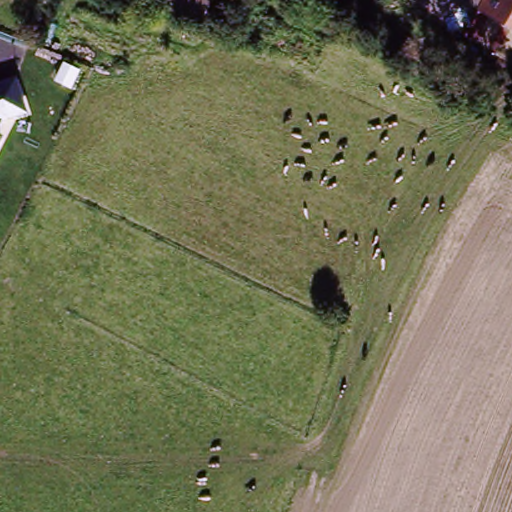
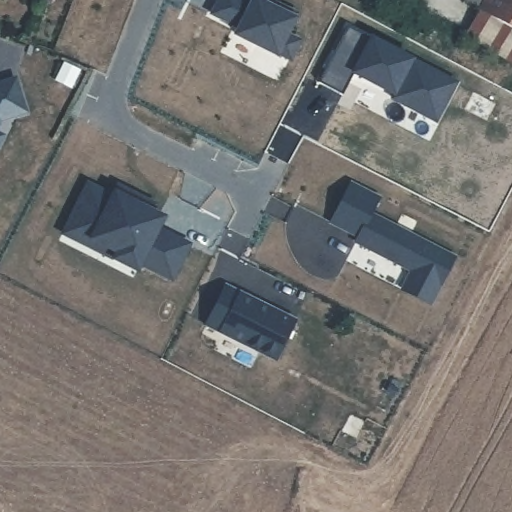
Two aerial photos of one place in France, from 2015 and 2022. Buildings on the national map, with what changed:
demolished [(152,5),(154,0),(207,0),(193,26),(152,5)]
new [(246,0),(250,1),(250,0),(258,0),(272,7),(274,3),(295,13),(285,33),(297,39),(289,56),(277,50),(276,53),(235,33),(238,25),(212,13),(219,0),(246,0)]
demolished [(425,121),(232,25),(243,0),(266,0),(440,91),(425,121)]
unchanged [(478,17),(462,8),(467,0),(512,0),(512,37),(478,17)]
unchanged [(512,37),(512,69),(464,41),(478,17),(512,37)]
new [(453,82),(433,120),(390,98),(392,94),(351,73),(340,95),(316,83),(344,27),(453,82)]
new [(54,81),(61,65),(75,71),(68,88),(54,81)]
unchanged [(27,114),(2,120),(0,122),(0,81),(17,76),(27,114)]
unchanged [(0,143),(0,132),(5,135),(0,143)]
new [(451,259),(427,305),(399,291),(409,272),(353,243),(356,238),(328,224),(348,185),(376,200),(368,216),(451,259)]
new [(85,186),(110,199),(115,188),(152,207),(149,213),(156,217),(150,228),(155,231),(186,246),(169,281),(137,266),(134,272),(111,261),(61,235),(71,214),(85,186)]
new [(273,361),(205,326),(224,288),(292,322),(273,361)]

